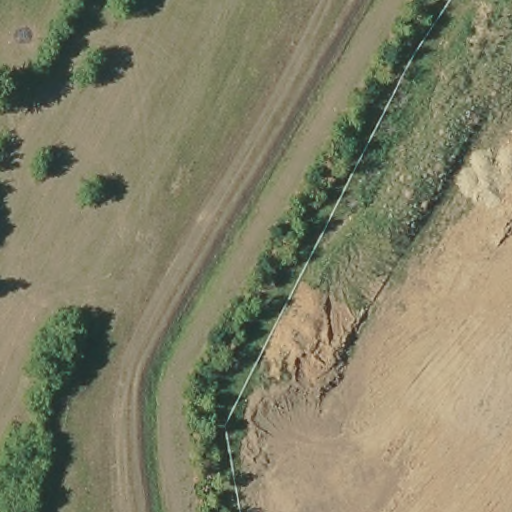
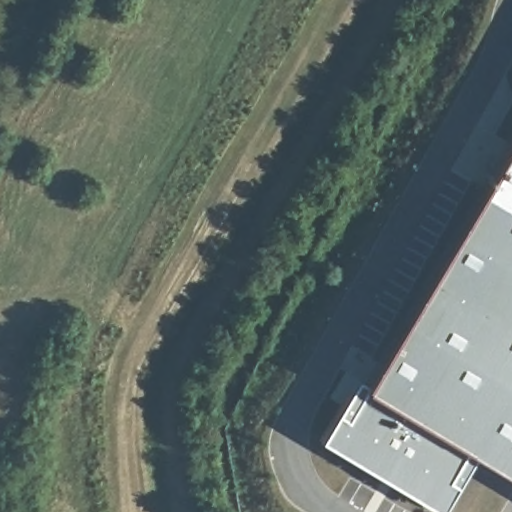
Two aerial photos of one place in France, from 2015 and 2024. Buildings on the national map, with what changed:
new [(506,174),(512,164),(512,178),(506,174)]
new [(512,179),(512,480),(472,456),(439,508),(316,437),(352,376),(363,381),(495,169),(512,179)]

